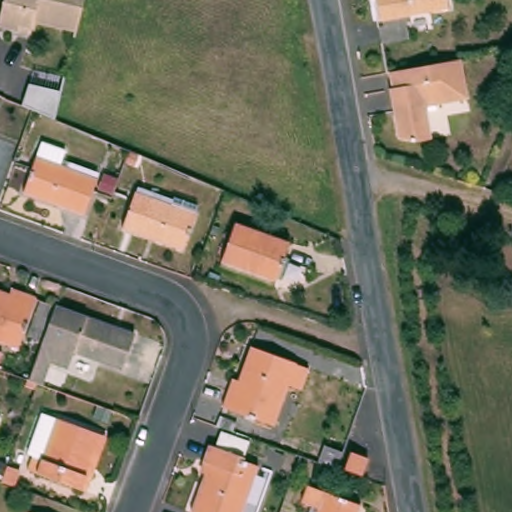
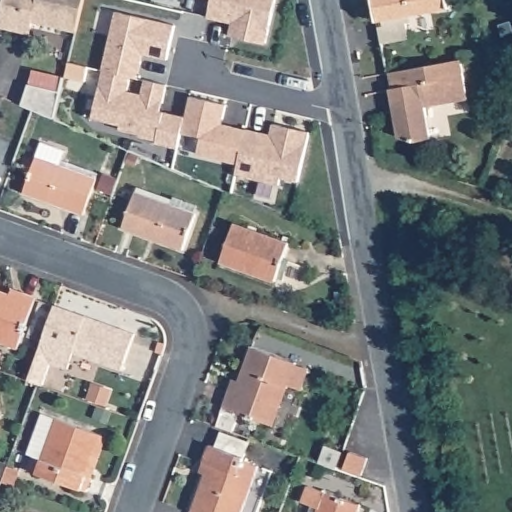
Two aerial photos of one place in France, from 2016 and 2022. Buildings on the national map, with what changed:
unchanged [(2,20),(7,0),(87,0),(81,26),(55,20),(38,15),(36,22),(35,29),(24,26),(2,20)]
new [(211,0),(276,0),(266,43),(229,35),(232,22),(208,16),(211,0)]
unchanged [(386,45),(381,22),(377,0),(454,0),(455,9),(408,17),(412,41),(386,45)]
new [(169,59),(144,54),(138,78),(130,76),(103,70),(116,10),(174,24),(169,59)]
unchanged [(426,65),(438,63),(465,59),(472,95),(429,104),(434,137),(417,141),(401,134),(392,89),(397,86),(393,71),(426,65)]
new [(103,70),(130,76),(127,90),(142,94),(145,79),(166,84),(160,110),(185,116),(181,131),(177,147),(156,142),(156,140),(139,135),(139,134),(119,129),(121,124),(92,117),(103,70)]
new [(30,85),(61,97),(55,119),(32,110),(22,105),(30,85)]
new [(185,116),(190,95),(226,104),(222,124),(246,129),(238,163),(198,154),(202,136),(181,131),(185,116)]
new [(238,163),(246,129),(270,134),(273,124),(310,132),(298,181),(281,177),(279,185),(235,174),(238,163)]
unchanged [(114,172),(101,167),(105,154),(118,160),(114,172)]
unchanged [(88,213),(28,192),(41,155),(101,177),(88,213)]
unchanged [(128,227),(141,191),(176,205),(180,196),(204,205),(200,214),(187,248),(128,227)]
unchanged [(280,280),(226,261),(239,222),(295,242),(280,280)]
unchanged [(21,347),(0,340),(0,289),(25,298),(27,291),(41,296),(21,347)]
unchanged [(41,382),(32,380),(40,357),(50,330),(37,325),(45,301),(58,305),(59,304),(79,311),(140,332),(127,370),(78,352),(73,369),(55,362),(47,385),(41,382)]
unchanged [(293,424),(280,419),(277,425),(227,407),(235,388),(239,378),(245,380),(257,346),(301,363),(300,366),(313,370),(293,424)]
unchanged [(6,420),(0,433),(0,411),(2,411),(6,420)]
unchanged [(97,478),(92,491),(42,473),(33,470),(37,455),(31,453),(46,412),(61,418),(106,434),(113,436),(97,478)]
unchanged [(249,456),(263,460),(244,512),(210,512),(197,506),(210,469),(205,467),(209,456),(215,440),(250,452),(249,456)]
unchanged [(325,445),(343,451),(337,470),(322,464),(318,463),(325,445)]
unchanged [(362,475),(345,468),(351,451),(368,458),(362,475)]
unchanged [(23,470),(18,486),(5,481),(11,465),(23,470)]
unchanged [(365,504),(362,512),(313,512),(316,505),(306,501),(312,485),(365,504)]
unchanged [(34,512),(33,512),(33,511),(34,512)]

